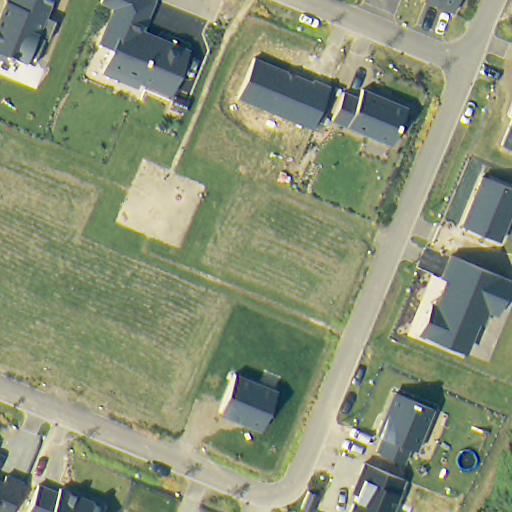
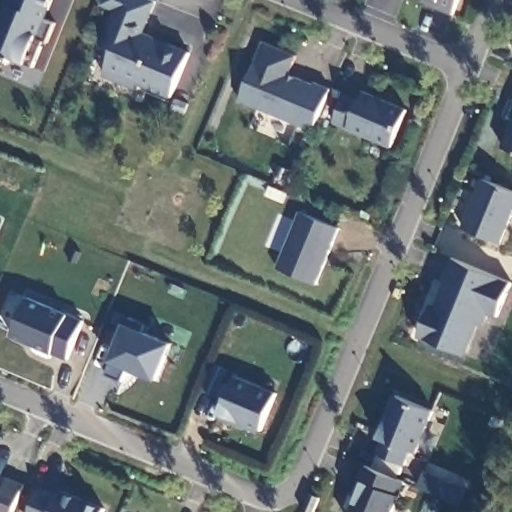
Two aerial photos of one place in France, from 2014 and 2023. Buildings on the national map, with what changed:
unchanged [(14,59),(12,62),(11,61),(9,65),(0,61),(0,26),(11,0),(55,0),(47,19),(58,24),(50,44),(46,42),(44,47),(35,68),(14,59)]
unchanged [(173,100),(142,87),(140,92),(105,77),(115,53),(102,47),(117,12),(104,6),(106,0),(151,0),(159,4),(145,36),(162,43),(191,56),(173,100)]
unchanged [(439,14),(442,7),(425,0),(465,0),(456,21),(439,14)]
unchanged [(257,59),(264,41),(296,54),(290,72),(257,59)]
unchanged [(314,80),(330,87),(313,130),(239,100),(257,59),(313,82),(314,80)]
unchanged [(365,97),(408,116),(393,153),(335,128),(346,101),(361,107),(365,97)]
unchanged [(512,111),(512,116),(510,115),(512,111)]
unchanged [(512,150),(503,146),(512,125),(512,150)]
unchanged [(512,216),(501,242),(463,226),(484,177),(512,189),(512,216)]
new [(315,284),(273,268),(298,210),(340,227),(315,284)]
unchanged [(435,317),(445,292),(441,290),(451,266),(511,292),(496,326),(485,321),(480,335),(471,332),(458,362),(416,344),(425,323),(429,313),(435,317)]
new [(68,360),(11,337),(29,297),(84,321),(68,360)]
new [(157,380),(127,368),(122,382),(102,373),(110,358),(125,322),(175,342),(157,380)]
unchanged [(277,391),(262,432),(220,416),(236,375),(277,391)]
unchanged [(435,410),(418,452),(410,448),(405,462),(376,451),(381,437),(376,436),(395,393),(435,410)]
unchanged [(406,480),(393,512),(350,512),(357,495),(353,492),(365,463),(406,480)]
unchanged [(1,483),(19,491),(10,512),(0,512),(0,487),(1,483)]
unchanged [(36,493),(55,501),(57,497),(94,512),(28,512),(36,493)]
unchanged [(304,502),(314,506),(311,512),(299,512),(304,502)]

